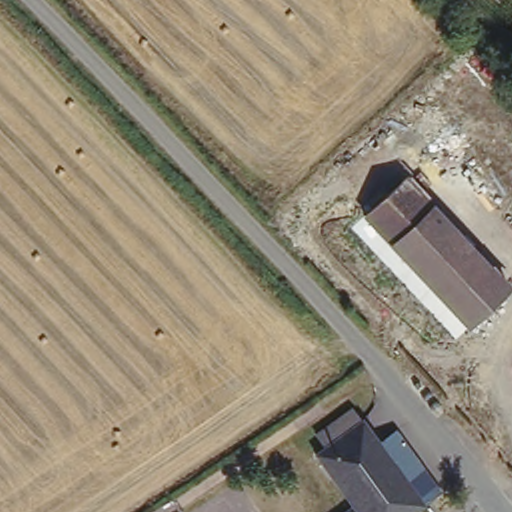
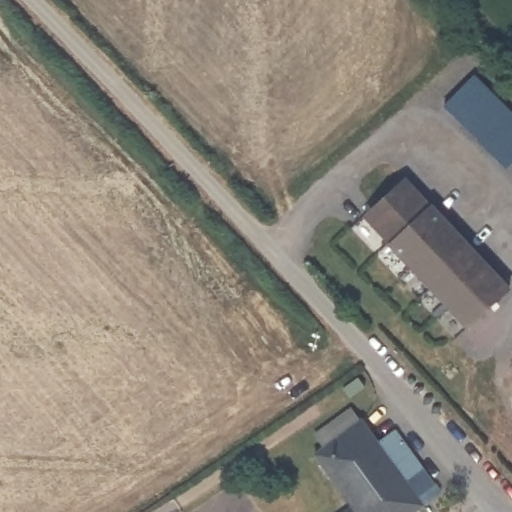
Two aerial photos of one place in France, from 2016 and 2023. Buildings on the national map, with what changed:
new [(512,111),(512,168),(510,170),(446,110),(479,78),(512,111)]
unchanged [(395,243),(368,215),(408,175),(435,204),(395,243)]
unchanged [(512,290),(472,325),(410,259),(399,269),(384,254),(395,243),(435,204),(512,285),(512,290)]
unchanged [(344,510),(336,499),(343,493),(314,451),(323,445),(314,433),(351,408),(377,442),(395,428),(423,468),(440,490),(422,504),(411,512),(341,512),(344,510)]

